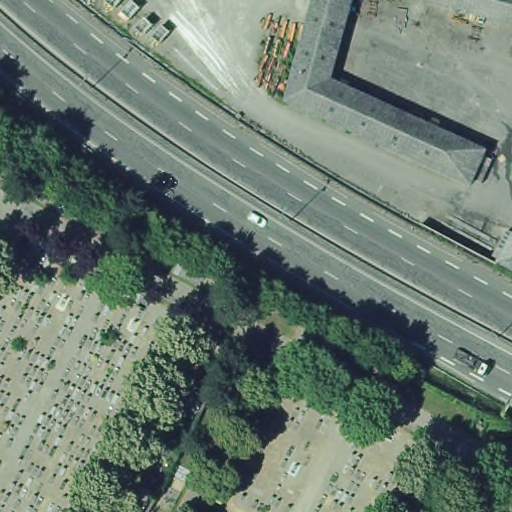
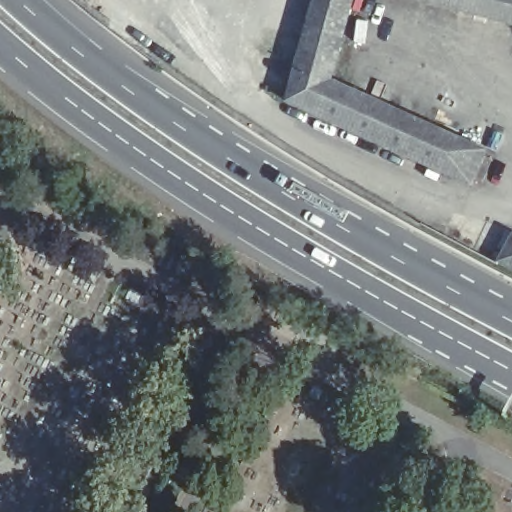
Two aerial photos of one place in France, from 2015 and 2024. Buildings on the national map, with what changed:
unchanged [(314,0),(353,0),(332,81),(322,117),(286,101),(314,0)]
unchanged [(512,0),(512,22),(428,0),(512,0)]
unchanged [(332,81),(485,148),(470,183),(322,117),(332,81)]
unchanged [(498,247),(507,229),(512,232),(512,268),(498,261),(504,250),(498,247)]

